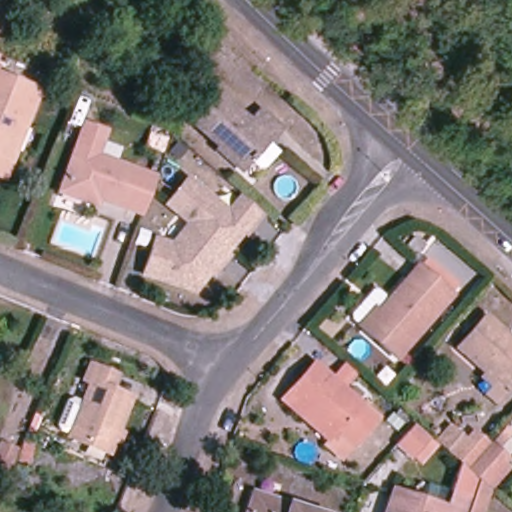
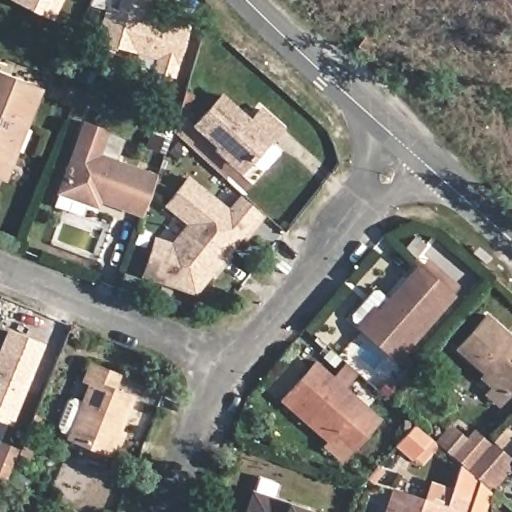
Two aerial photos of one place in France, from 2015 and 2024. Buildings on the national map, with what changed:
new [(11,0),(62,0),(52,20),(11,0)]
new [(151,0),(148,11),(189,23),(173,82),(149,75),(155,59),(94,39),(103,9),(88,5),(90,0),(151,0)]
unchanged [(0,180),(0,81),(35,94),(9,168),(4,182),(0,180)]
unchanged [(190,129),(214,98),(243,121),(253,110),(275,127),(265,140),(262,137),(260,139),(274,150),(261,166),(253,167),(244,160),(237,167),(190,129)]
unchanged [(84,197),(56,187),(82,120),(102,127),(93,150),(153,172),(139,209),(96,193),(94,201),(84,197)]
unchanged [(262,215),(263,216),(252,230),(249,227),(227,254),(230,256),(220,269),(217,267),(196,293),(145,277),(156,242),(173,247),(191,226),(168,207),(189,182),(230,215),(242,199),(262,215)]
unchanged [(359,327),(347,318),(373,287),(390,301),(418,270),(449,297),(394,358),(359,327)]
unchanged [(493,386),(482,376),(485,372),(456,345),(485,314),(512,338),(512,385),(507,391),(496,403),(486,394),(493,386)]
new [(6,327),(44,343),(10,425),(0,421),(0,343),(6,327)]
unchanged [(286,391),(315,360),(376,415),(351,442),(341,453),(326,440),(330,436),(283,394),(286,391)]
unchanged [(119,444),(113,442),(108,455),(68,438),(90,383),(84,380),(89,366),(115,376),(109,391),(130,399),(117,431),(123,433),(119,444)]
unchanged [(427,440),(410,459),(396,446),(413,427),(427,440)]
unchanged [(458,467),(451,461),(435,447),(449,431),(466,446),(474,436),(487,447),(464,472),(458,467)]
unchanged [(18,450),(20,443),(31,448),(25,462),(14,458),(18,450)]
unchanged [(0,481),(0,445),(15,451),(2,482),(0,481)]
unchanged [(470,470),(489,449),(491,447),(508,462),(503,467),(508,472),(488,494),(478,485),(476,483),(472,480),(466,475),(470,470)]
unchanged [(391,488),(445,506),(458,467),(464,472),(463,475),(472,480),(476,483),(468,512),(383,512),(391,488)]
unchanged [(251,492),(310,512),(244,512),(251,492)]

